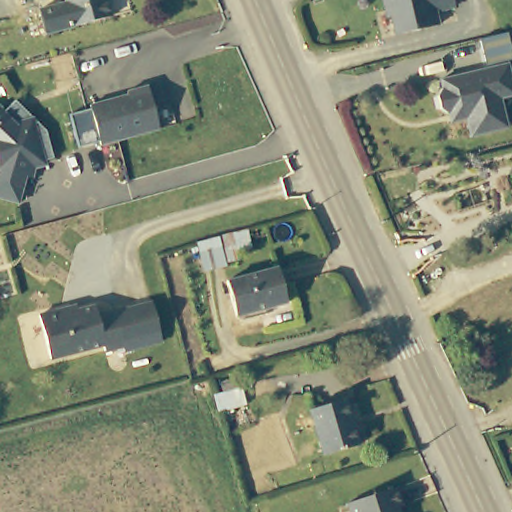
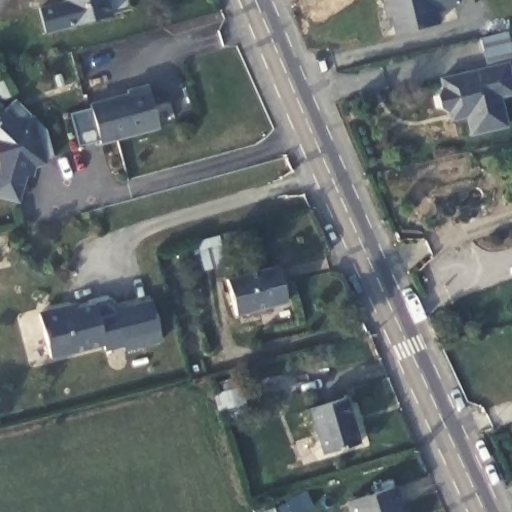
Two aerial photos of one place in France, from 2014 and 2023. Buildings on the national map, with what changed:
unchanged [(42,34),(36,10),(64,3),(63,0),(103,0),(108,18),(42,34)]
unchanged [(436,8),(439,22),(398,31),(393,12),(387,13),(383,0),(455,0),(456,3),(436,8)]
unchanged [(512,94),(500,97),(507,126),(471,134),(467,116),(451,120),(447,108),(441,106),(438,93),(442,89),(440,78),(486,66),(479,37),(501,32),(502,32),(507,30),(512,55),(512,62),(508,63),(512,83),(512,94)]
unchanged [(165,126),(106,142),(106,139),(84,144),(75,110),(97,105),(96,101),(131,92),(135,88),(153,84),(165,126)]
unchanged [(3,114),(16,101),(46,135),(54,160),(35,166),(31,160),(20,163),(23,173),(16,203),(0,198),(0,112),(3,114)]
unchanged [(236,249),(238,259),(226,259),(228,263),(205,269),(196,240),(220,234),(246,227),(252,247),(236,249)]
unchanged [(291,296),(244,313),(232,278),(279,262),(291,296)]
unchanged [(95,312),(113,306),(114,310),(150,301),(159,338),(124,348),(123,343),(103,347),(101,341),(47,356),(36,309),(59,303),(68,308),(93,300),(95,312)]
unchanged [(360,443),(327,452),(314,407),(348,398),(360,443)]
unchanged [(399,507),(394,509),(395,512),(351,512),(349,502),(392,487),(399,507)]

